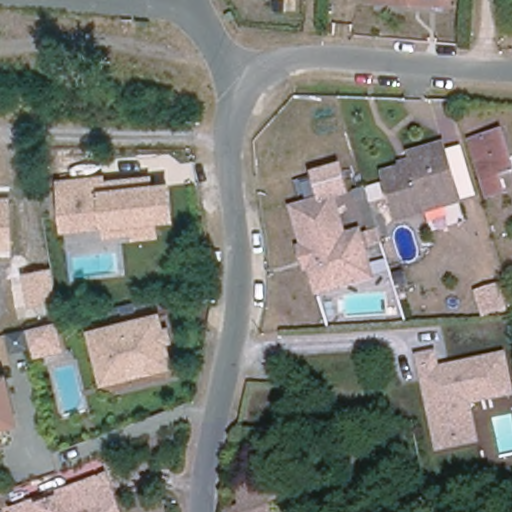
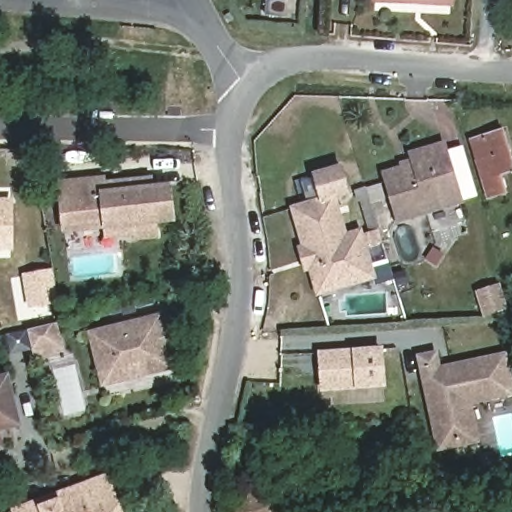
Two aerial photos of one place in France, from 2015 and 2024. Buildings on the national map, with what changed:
unchanged [(505,193),(489,197),(473,140),(501,131),(512,167),(512,171),(500,174),(505,193)]
unchanged [(462,197),(399,216),(385,170),(405,164),(407,168),(416,165),(414,157),(447,146),(462,197)]
unchanged [(107,181),(152,175),(153,185),(172,182),(177,221),(157,224),(159,238),(134,241),(133,236),(105,239),(103,227),(63,232),(57,178),(105,173),(107,181)]
unchanged [(345,230),(360,226),(370,258),(338,268),(342,280),(320,286),(312,260),(316,258),(311,241),(306,243),(294,203),(333,191),(345,230)]
unchanged [(10,197),(10,249),(0,248),(0,197),(10,197)]
unchanged [(49,266),(56,299),(28,306),(23,272),(49,266)]
unchanged [(505,309),(482,316),(474,289),(498,284),(505,309)]
unchanged [(102,386),(87,330),(159,312),(164,328),(171,327),(175,342),(168,343),(174,368),(102,386)]
unchanged [(66,352),(35,359),(33,351),(10,356),(6,333),(59,322),(66,352)]
new [(386,347),(389,383),(328,389),(325,353),(386,347)]
unchanged [(440,363),(505,350),(512,388),(512,393),(470,403),(477,441),(436,451),(416,353),(437,349),(440,363)]
unchanged [(8,372),(21,423),(0,429),(0,374),(8,372)]
unchanged [(3,448),(0,449),(0,441),(3,448)]
unchanged [(272,512),(227,512),(242,507),(236,490),(288,471),(296,492),(268,502),(272,512)]
unchanged [(112,477),(120,502),(124,512),(12,512),(112,477)]

